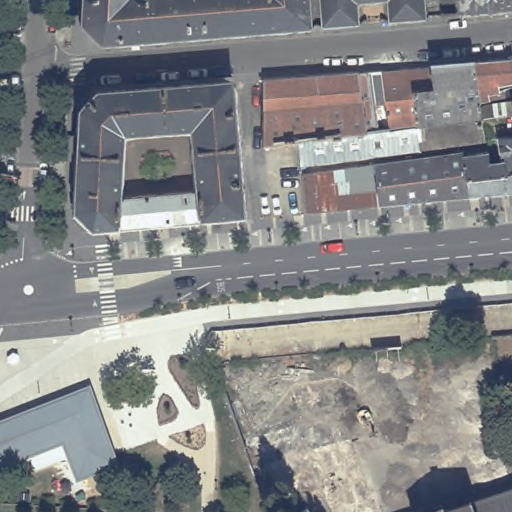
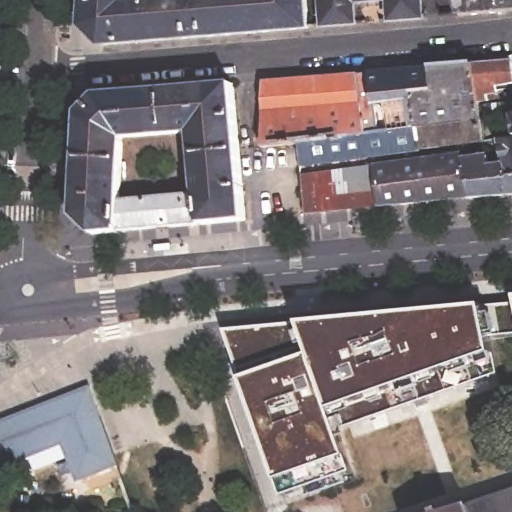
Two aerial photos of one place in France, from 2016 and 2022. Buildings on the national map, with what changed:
unchanged [(91,0),(311,0),(314,33),(106,50),(89,31),(91,0)]
unchanged [(392,0),(359,3),(361,24),(328,27),(326,0),(392,0)]
unchanged [(394,22),(392,0),(429,0),(430,19),(394,22)]
unchanged [(512,0),(512,17),(464,21),(462,0),(512,0)]
unchanged [(512,64),(512,90),(508,90),(509,98),(482,99),(477,66),(512,64)]
unchanged [(488,141),(304,167),(302,145),(379,134),(418,128),(440,123),(438,96),(437,69),(477,66),(482,99),(483,103),(512,101),(512,138),(503,139),(488,141)]
unchanged [(379,134),(378,124),(374,74),(437,69),(438,96),(421,97),(418,128),(379,134)]
unchanged [(267,83),(374,74),(378,124),(379,134),(302,145),(266,149),(267,83)]
unchanged [(82,114),(102,96),(237,85),(248,221),(96,235),(78,217),(82,114)]
unchanged [(496,157),(497,165),(507,163),(503,139),(512,138),(512,197),(475,200),(471,158),(496,157)]
unchanged [(379,168),(471,154),(471,158),(475,200),(383,208),(379,168)]
unchanged [(306,177),(379,168),(383,208),(310,215),(306,177)]
new [(494,353),(498,373),(343,423),(348,435),(340,437),(347,455),(353,472),(282,496),(277,481),(240,379),(224,330),(300,323),(484,306),(512,301),(512,329),(489,332),(494,353)]
unchanged [(89,390),(118,467),(80,481),(66,444),(0,471),(0,426),(89,390)]
unchanged [(512,512),(478,512),(476,506),(512,494),(512,512)]
unchanged [(478,512),(460,512),(476,506),(478,512)]

